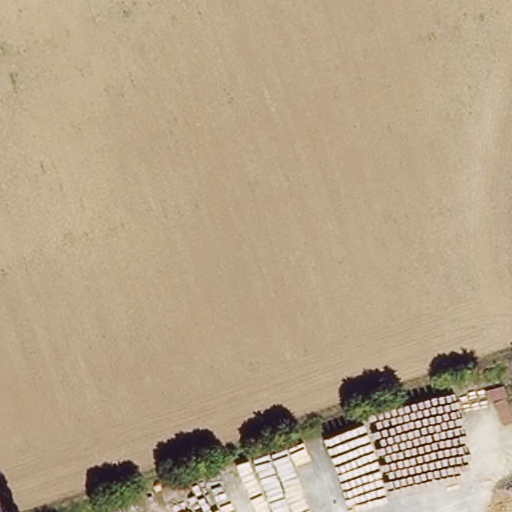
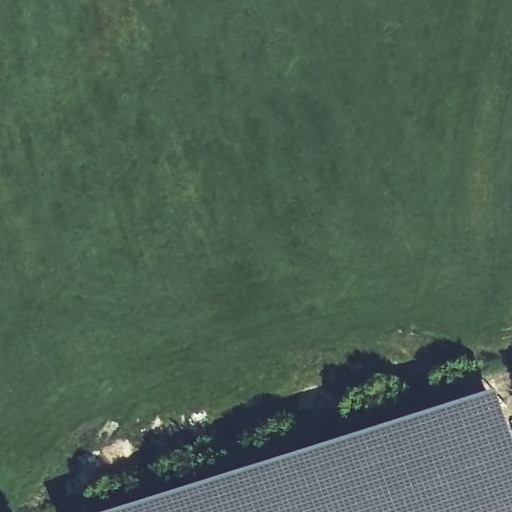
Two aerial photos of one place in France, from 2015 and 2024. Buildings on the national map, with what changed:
new [(459,392),(497,382),(512,428),(512,512),(81,512),(459,392)]

